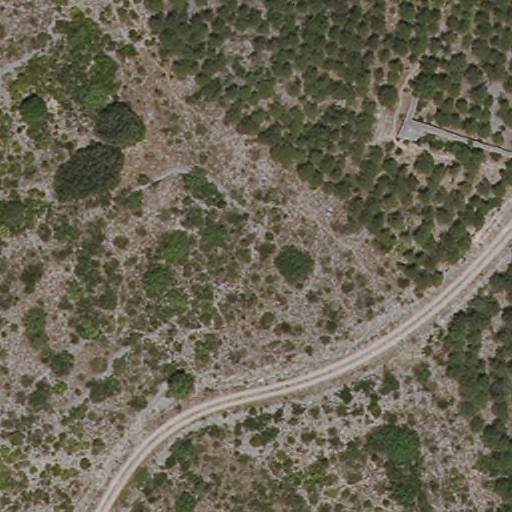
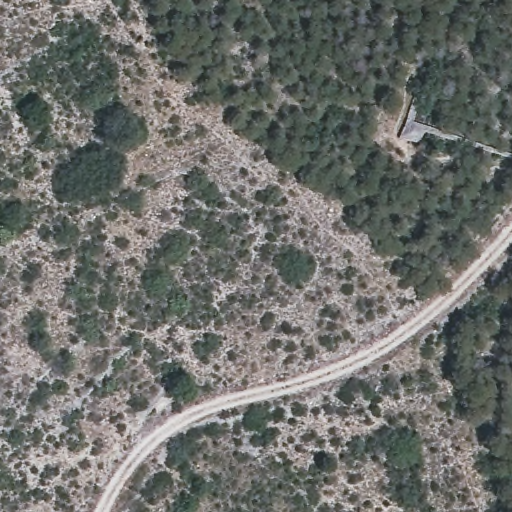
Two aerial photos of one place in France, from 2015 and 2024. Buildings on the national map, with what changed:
[]

